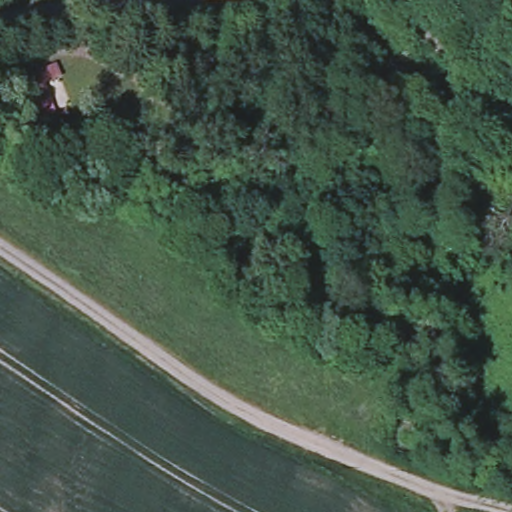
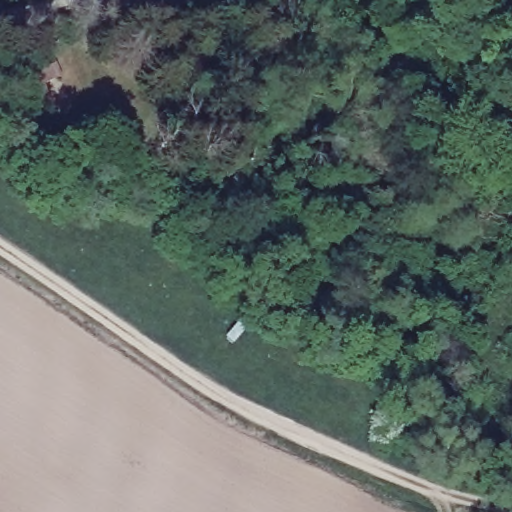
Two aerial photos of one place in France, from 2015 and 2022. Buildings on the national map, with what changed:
unchanged [(140,44),(163,66),(141,92),(116,72),(140,44)]

